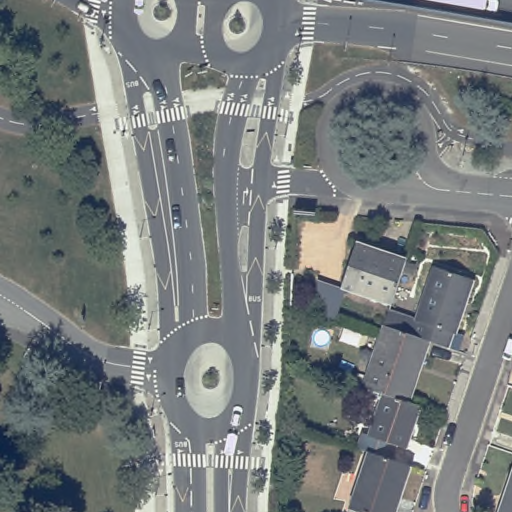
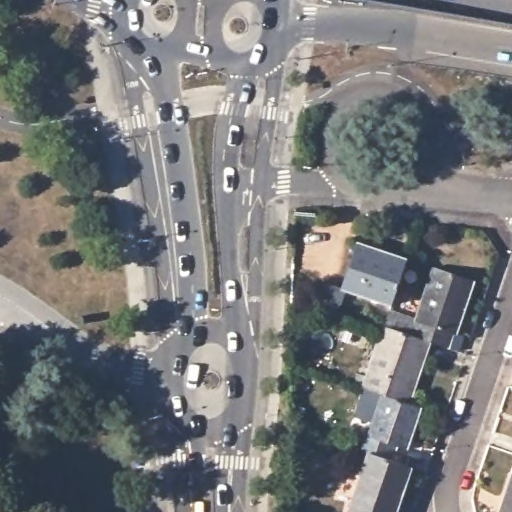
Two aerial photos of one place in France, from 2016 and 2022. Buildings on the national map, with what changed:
unchanged [(339,291),(355,245),(404,261),(388,307),(339,291)]
unchanged [(428,345),(381,330),(387,314),(413,323),(431,272),(473,285),(455,339),(450,337),(445,351),(428,345)]
unchanged [(343,295),(335,322),(315,316),(315,286),(343,295)]
unchanged [(381,399),(360,391),(377,341),(381,330),(428,345),(407,408),(381,399)]
unchanged [(366,455),(355,451),(360,437),(366,439),(381,399),(407,408),(418,412),(403,454),(392,450),(389,462),(366,455)]
unchanged [(410,469),(395,512),(350,512),(347,511),(366,455),(389,462),(410,469)]
unchanged [(512,512),(502,512),(512,482),(512,512)]

